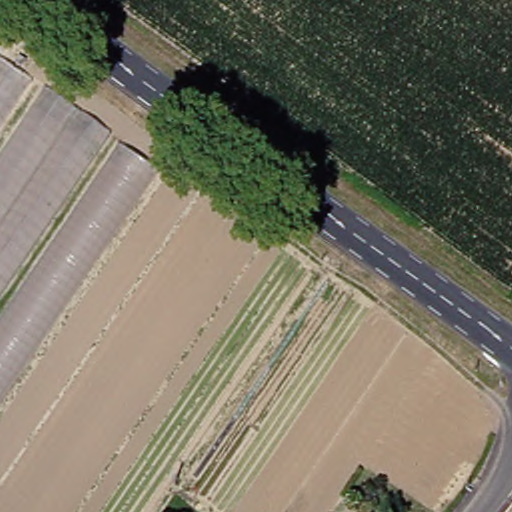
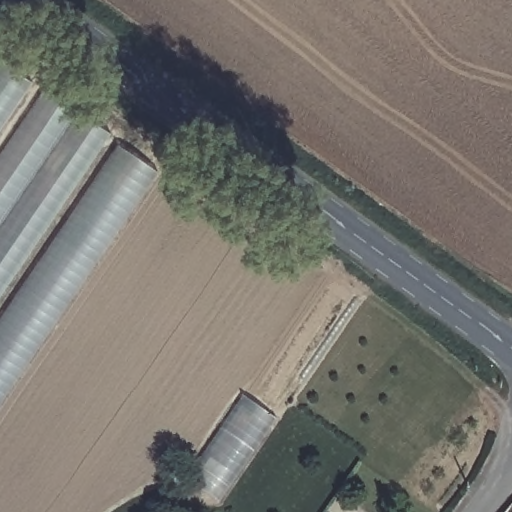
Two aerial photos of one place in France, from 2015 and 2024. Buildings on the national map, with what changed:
unchanged [(29,90),(0,133),(0,60),(32,82),(29,90)]
unchanged [(104,140),(0,294),(0,133),(29,90),(104,140)]
unchanged [(0,294),(104,140),(146,167),(0,383),(0,294)]
new [(242,397),(274,420),(219,505),(187,483),(242,397)]
unchanged [(507,498),(512,502),(512,512),(496,512),(507,498)]

